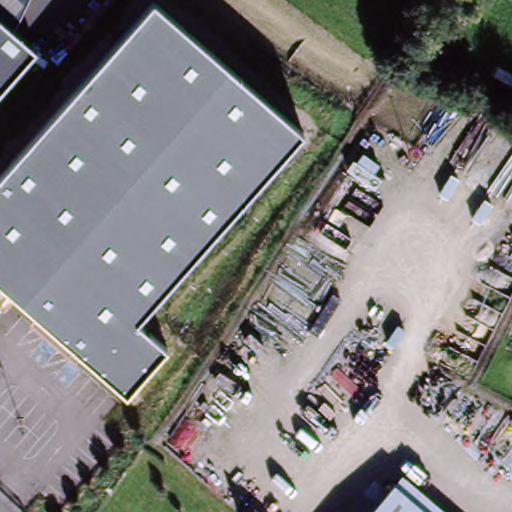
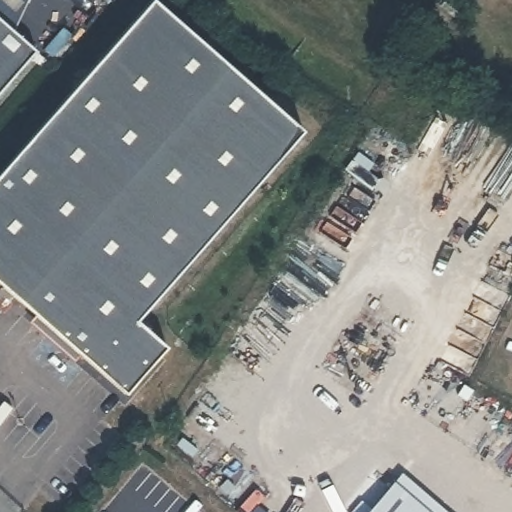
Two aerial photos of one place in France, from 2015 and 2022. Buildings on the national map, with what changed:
unchanged [(38,50),(0,93),(0,0),(28,0),(14,30),(38,50)]
unchanged [(154,0),(301,132),(136,321),(165,347),(125,393),(77,353),(72,364),(27,325),(32,312),(0,285),(0,171),(149,0),(154,0)]
unchanged [(446,512),(367,512),(400,472),(446,512)]

